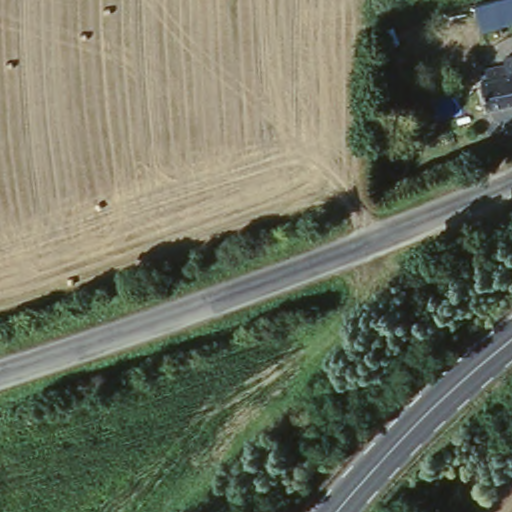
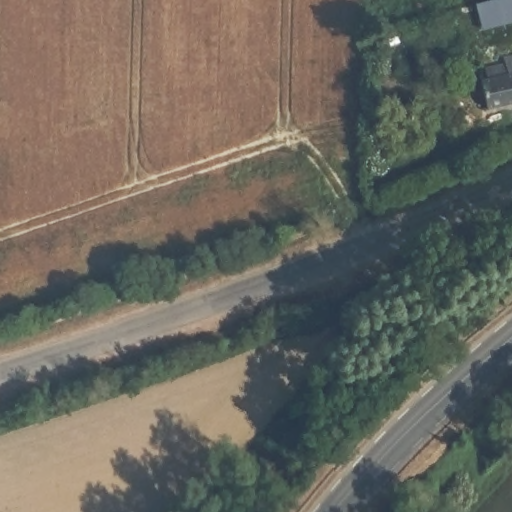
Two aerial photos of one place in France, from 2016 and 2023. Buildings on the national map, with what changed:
unchanged [(512,0),(512,21),(484,28),(477,2),(484,0),(512,0)]
unchanged [(479,83),(485,79),(485,69),(500,67),(498,57),(512,55),(512,104),(486,110),(479,83)]

